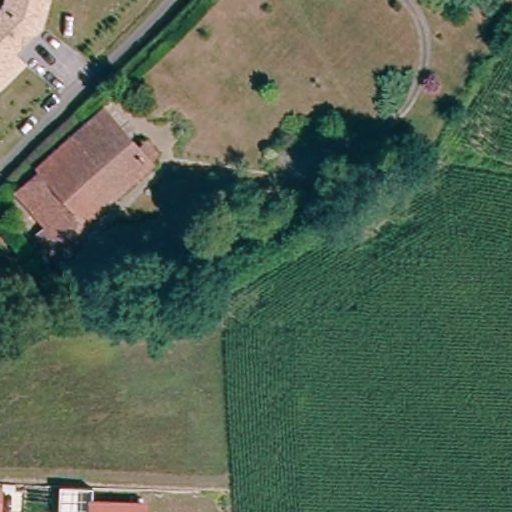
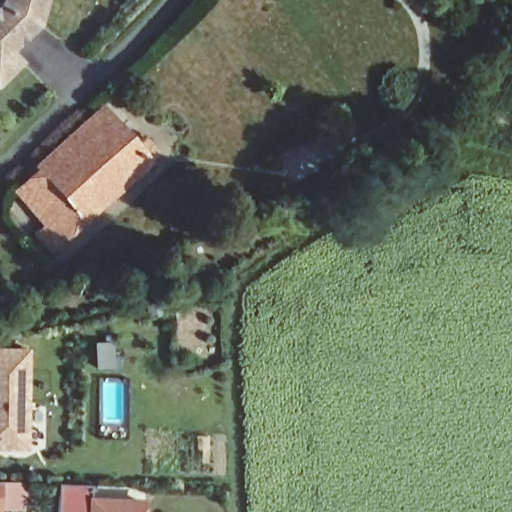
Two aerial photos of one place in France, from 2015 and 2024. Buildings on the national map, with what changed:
unchanged [(51,0),(44,26),(15,53),(26,65),(3,87),(0,85),(0,13),(8,5),(10,0),(51,0)]
unchanged [(52,245),(38,230),(47,221),(19,189),(41,169),(37,164),(103,107),(149,159),(52,245)]
new [(0,348),(31,348),(31,450),(0,449),(0,348)]
new [(57,482),(91,484),(91,499),(91,512),(57,512),(57,482)]
demolished [(35,483),(77,485),(76,512),(34,512),(35,483)]
unchanged [(145,503),(144,512),(91,512),(91,499),(145,503)]

